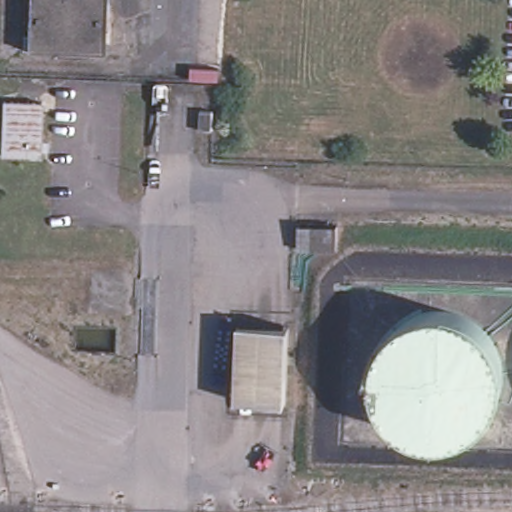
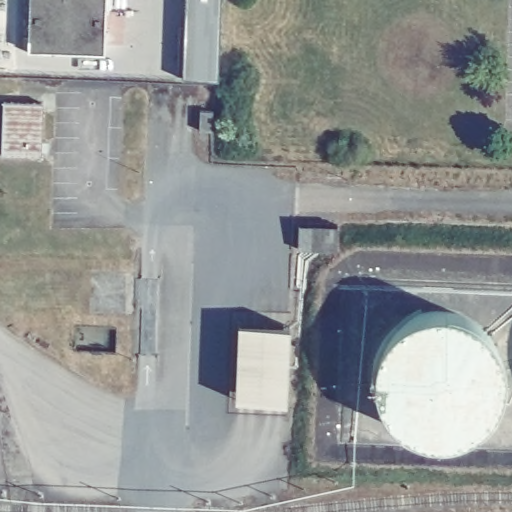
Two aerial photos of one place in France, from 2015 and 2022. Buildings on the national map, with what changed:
unchanged [(29,0),(107,0),(105,56),(27,52),(29,0)]
unchanged [(175,119),(146,117),(147,89),(177,91),(175,119)]
unchanged [(0,113),(0,102),(38,104),(36,157),(0,156),(0,113)]
unchanged [(203,135),(205,116),(218,117),(218,136),(203,135)]
unchanged [(293,254),(295,230),(334,232),(332,256),(293,254)]
unchanged [(231,404),(234,325),(290,327),(287,406),(231,404)]

